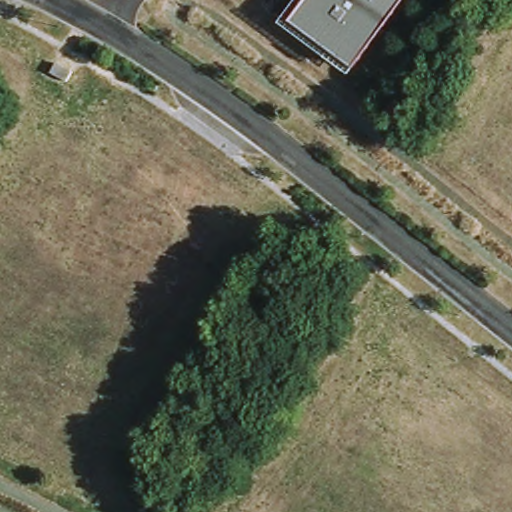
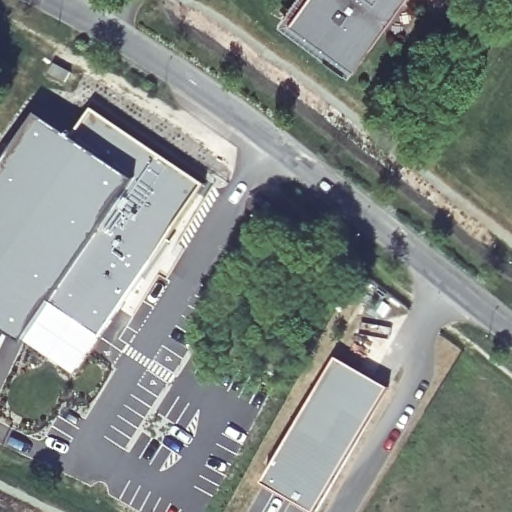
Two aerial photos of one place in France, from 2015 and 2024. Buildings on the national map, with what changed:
unchanged [(278,23),(292,0),(403,0),(354,65),(349,74),(278,23)]
new [(71,133),(91,104),(159,152),(205,182),(101,334),(73,376),(24,341),(25,339),(0,322),(0,166),(38,110),(71,133)]
new [(340,356),(393,386),(320,511),(268,481),(340,356)]

